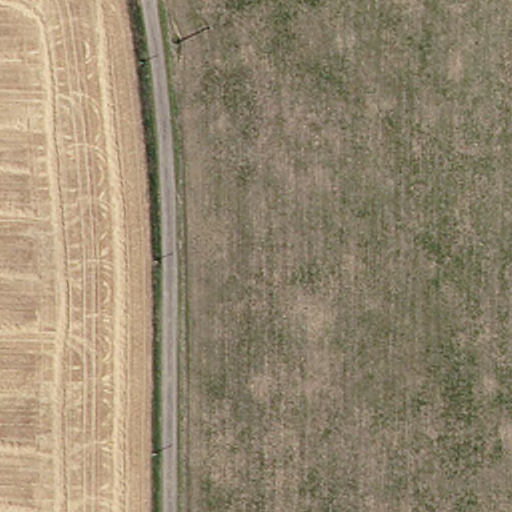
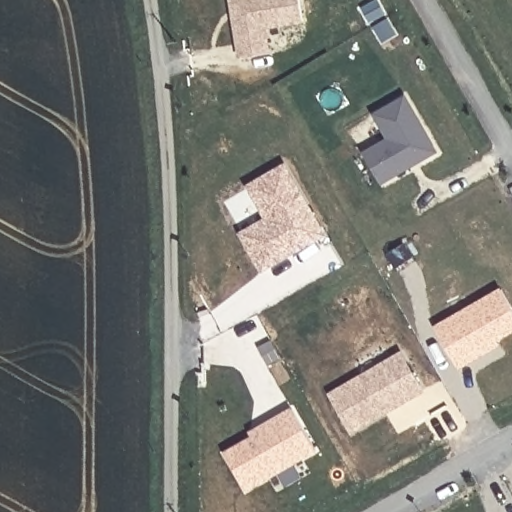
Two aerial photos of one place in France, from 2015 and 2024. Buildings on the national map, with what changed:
new [(303,22),(267,29),(270,54),(241,58),(232,0),(300,0),(303,22)]
new [(437,152),(382,184),(365,152),(388,139),(376,113),(407,95),(437,152)]
new [(238,233),(264,219),(246,186),(286,162),(327,235),(262,273),(238,233)]
new [(434,326),(500,288),(512,308),(512,333),(498,341),(501,346),(460,368),(434,326)]
new [(328,393),(403,350),(427,392),(352,434),(328,393)]
new [(252,433),(261,428),(293,410),(316,451),(247,490),(226,453),(254,437),(252,433)]

